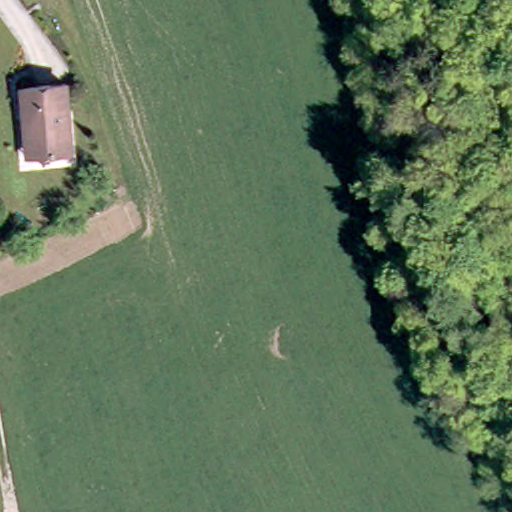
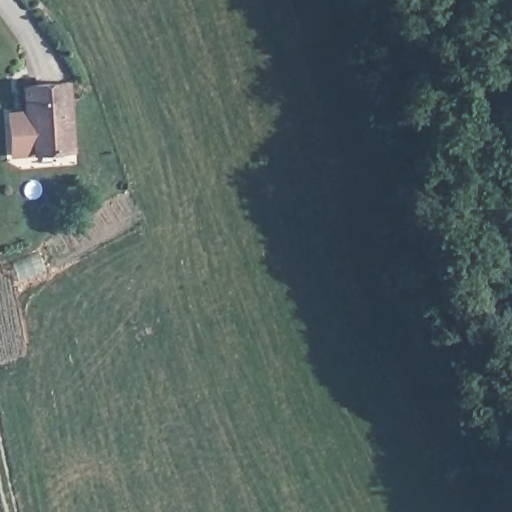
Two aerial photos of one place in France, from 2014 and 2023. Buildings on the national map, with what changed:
unchanged [(30,117),(27,84),(70,79),(78,145),(45,149),(33,150),(30,117)]

